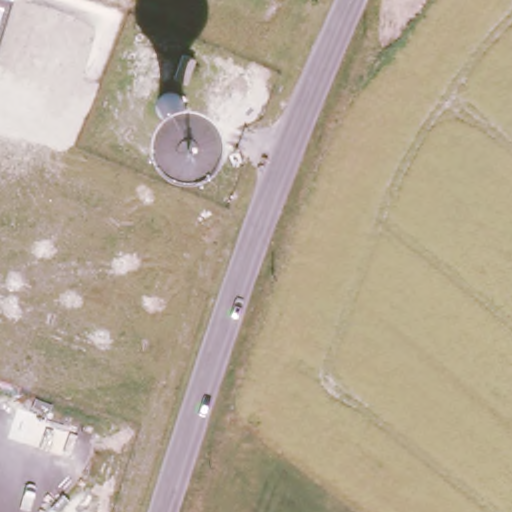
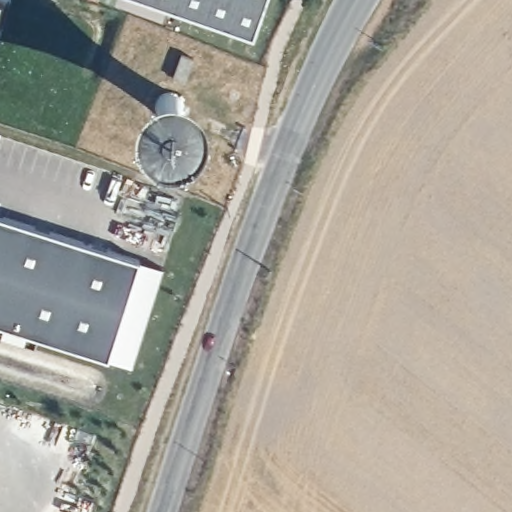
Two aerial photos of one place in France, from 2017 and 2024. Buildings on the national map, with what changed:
unchanged [(8,0),(0,27),(0,0),(8,0)]
new [(133,0),(181,0),(176,15),(133,0)]
new [(176,15),(181,0),(268,0),(253,43),(176,15)]
new [(134,252),(103,348),(0,315),(0,210),(134,252)]

